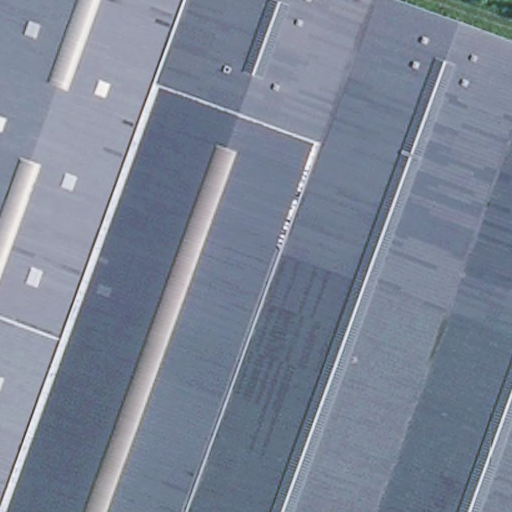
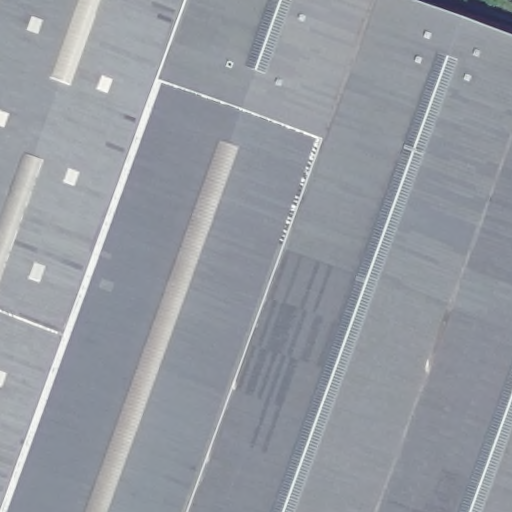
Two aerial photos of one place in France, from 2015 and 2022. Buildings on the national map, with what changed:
unchanged [(0,0),(37,0),(0,60),(0,0)]
unchanged [(0,507),(0,60),(37,0),(182,0),(153,80),(0,507)]
unchanged [(316,140),(153,80),(182,0),(402,0),(512,39),(512,512),(184,512),(316,140)]
unchanged [(184,512),(0,512),(0,507),(153,80),(316,140),(184,512)]

